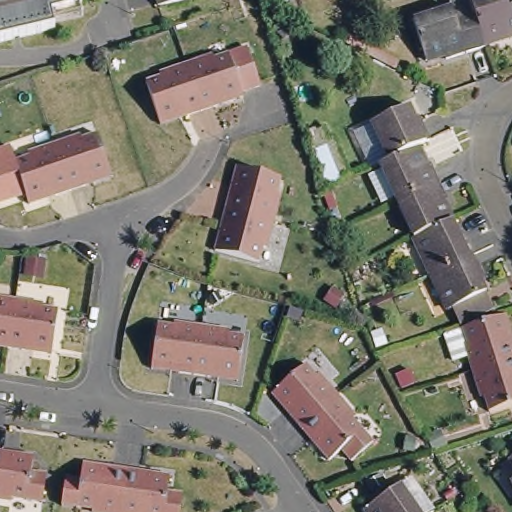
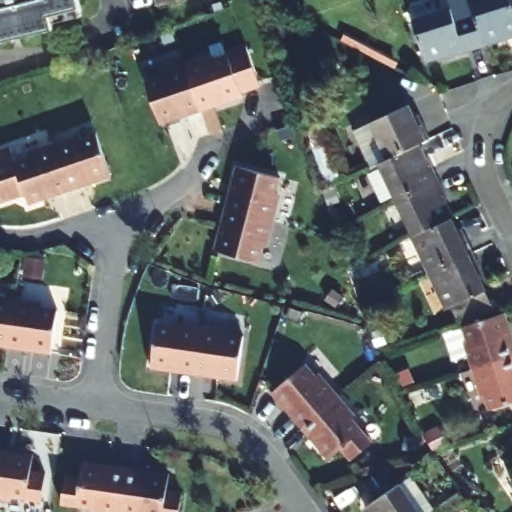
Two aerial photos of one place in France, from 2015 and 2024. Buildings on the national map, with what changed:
unchanged [(81,4),(51,10),(54,24),(0,37),(0,0),(80,0),(81,4)]
unchanged [(156,2),(156,0),(163,0),(156,2)]
unchanged [(504,35),(502,30),(482,37),(472,6),(470,0),(512,0),(512,32),(504,35)]
unchanged [(445,47),(425,53),(412,14),(452,1),(456,11),(472,6),(482,37),(483,40),(447,52),(445,47)]
unchanged [(206,66),(207,69),(222,64),(239,57),(251,92),(235,99),(236,104),(210,112),(210,114),(195,119),(179,75),(206,66)]
unchanged [(139,93),(154,87),(153,84),(179,75),(195,119),(180,125),(180,123),(153,132),(139,93)]
unchanged [(377,123),(416,105),(425,125),(430,122),(438,137),(422,145),(394,158),(377,123)]
unchanged [(52,145),(79,136),(80,139),(95,134),(109,174),(82,182),(82,184),(67,189),(52,145)]
unchanged [(12,162),(27,157),(26,154),(52,145),(67,189),(52,194),(52,192),(25,202),(12,162)]
unchanged [(394,158),(422,145),(432,165),(436,162),(444,178),(400,199),(383,163),(394,158)]
unchanged [(0,199),(0,147),(5,146),(12,162),(22,191),(0,199)]
unchanged [(276,181),(273,196),(276,197),(269,224),(223,212),(227,197),(229,197),(236,170),(276,181)]
unchanged [(453,198),(448,201),(456,217),(418,236),(400,199),(444,178),(453,198)]
unchanged [(269,224),(262,251),(258,250),(254,266),(214,255),(221,228),(219,227),(223,212),(269,224)]
unchanged [(456,217),(465,237),(470,235),(478,252),(436,272),(418,236),(456,217)]
unchanged [(461,323),(453,308),(436,272),(478,252),(487,271),(480,273),(489,292),(497,306),(461,323)]
unchanged [(2,305),(0,319),(0,305),(2,305)]
unchanged [(2,305),(3,305),(30,308),(30,312),(46,315),(40,356),(12,352),(12,353),(0,352),(0,319),(2,305)]
unchanged [(510,312),(512,319),(512,358),(480,368),(475,352),(461,357),(452,330),(470,325),(481,321),(510,312)]
unchanged [(154,323),(170,326),(171,322),(198,327),(192,373),(176,371),(176,370),(148,366),(154,323)]
unchanged [(198,327),(226,331),(225,334),(241,337),(235,378),(208,374),(207,376),(192,373),(198,327)]
unchanged [(492,393),(488,395),(480,368),(512,358),(512,404),(497,409),(492,393)]
unchanged [(302,368),(313,380),(315,378),(334,399),(298,430),(287,417),(289,417),(270,396),(302,368)]
unchanged [(334,399),(352,421),(349,422),(370,446),(350,463),(340,452),(328,462),(310,441),(308,442),(298,430),(334,399)]
unchanged [(20,456),(19,460),(50,464),(46,490),(32,487),(29,504),(2,500),(2,502),(0,501),(0,453),(20,456)]
unchanged [(82,495),(66,492),(70,467),(101,472),(101,468),(129,472),(123,512),(83,512),(79,512),(82,495)]
unchanged [(156,476),(155,479),(186,483),(183,510),(168,507),(167,512),(123,512),(129,472),(156,476)]
unchanged [(396,483),(416,512),(366,512),(362,506),(396,483)]

